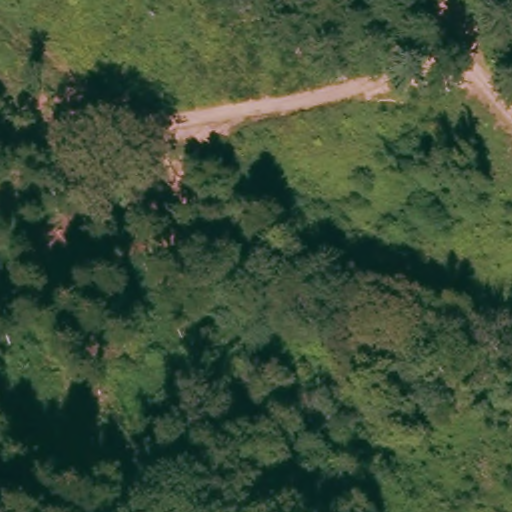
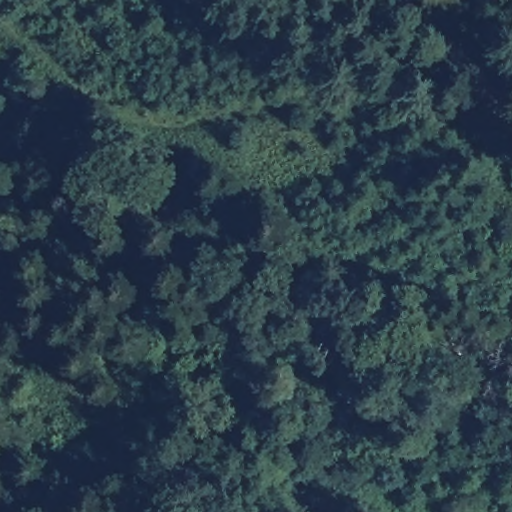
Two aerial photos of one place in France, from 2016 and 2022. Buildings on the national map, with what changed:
[]

